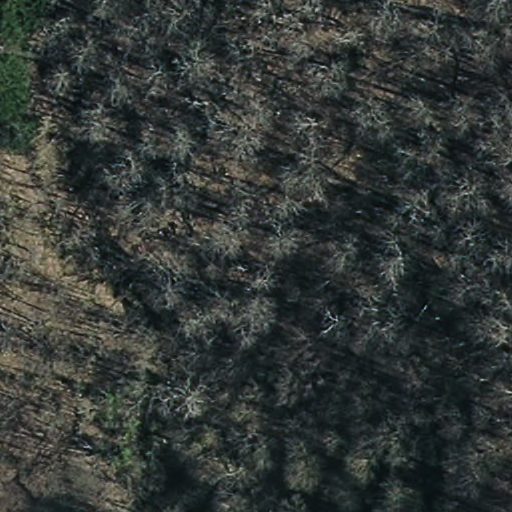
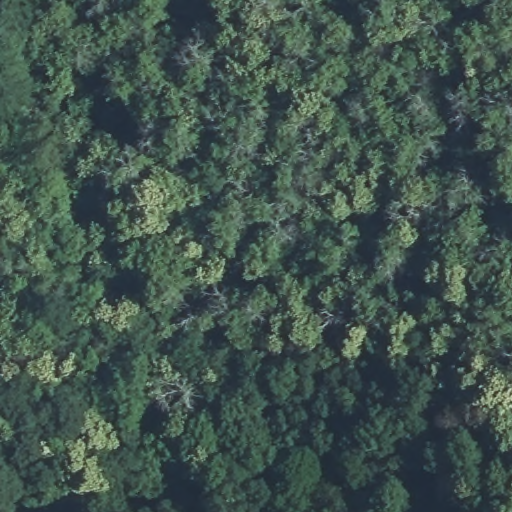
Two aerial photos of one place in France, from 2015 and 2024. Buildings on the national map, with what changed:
unchanged [(378,46),(378,76),(355,76),(355,47),(378,46)]

